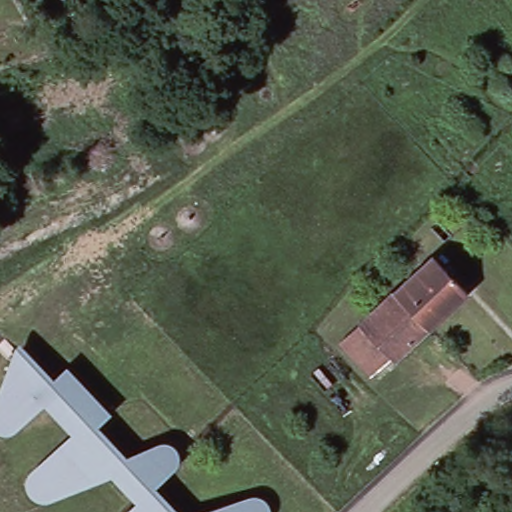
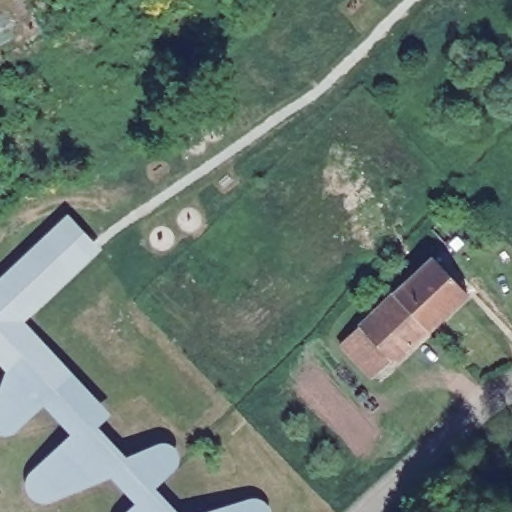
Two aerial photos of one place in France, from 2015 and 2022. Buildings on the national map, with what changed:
new [(55,378),(20,343),(13,350),(6,369),(0,363),(0,276),(67,213),(101,248),(23,321),(65,367),(55,378)]
unchanged [(435,261),(468,297),(431,331),(397,295),(435,261)]
unchanged [(397,295),(431,331),(395,364),(392,360),(362,327),(397,295)]
unchanged [(375,376),(343,343),(362,327),(392,360),(375,376)]
unchanged [(112,413),(98,427),(125,457),(169,443),(177,447),(181,454),(182,461),(179,467),(156,488),(178,512),(130,512),(137,505),(111,480),(45,503),(34,502),(28,498),(25,492),(24,487),(29,476),(70,437),(43,407),(7,438),(0,438),(0,384),(13,350),(20,343),(55,378),(65,367),(112,413)]
unchanged [(247,499),(259,498),(268,504),(271,510),(271,512),(204,512),(247,499)]

